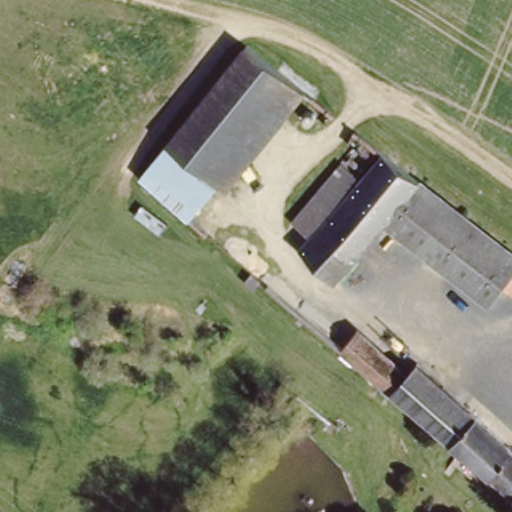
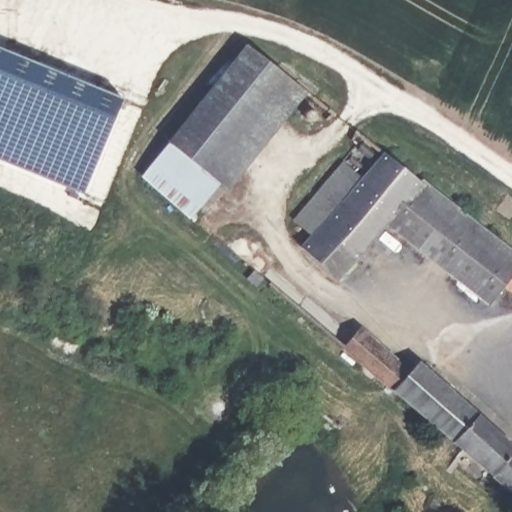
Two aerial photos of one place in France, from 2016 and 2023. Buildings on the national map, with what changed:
new [(83,193),(0,159),(0,50),(122,100),(83,193)]
unchanged [(293,104),(190,224),(140,178),(234,57),(293,104)]
unchanged [(430,247),(382,209),(320,280),(285,250),(370,154),(512,266),(512,293),(507,299),(492,287),(488,291),(485,288),(479,295),(465,284),(460,291),(420,259),(430,247)]
unchanged [(360,332),(403,372),(413,362),(512,447),(512,499),(343,351),(360,332)]

